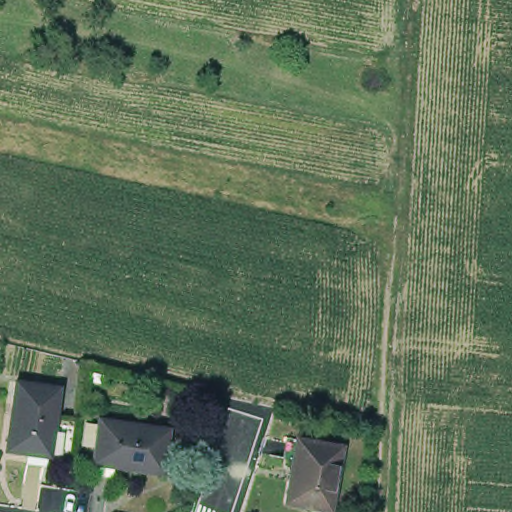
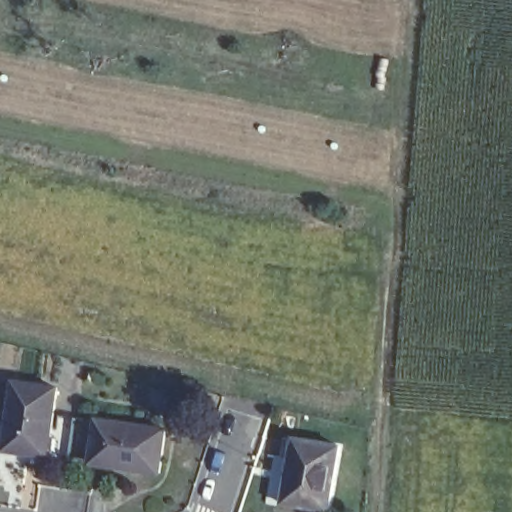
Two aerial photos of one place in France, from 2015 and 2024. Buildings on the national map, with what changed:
unchanged [(0,451),(11,382),(55,387),(45,457),(0,451)]
unchanged [(88,465),(94,421),(163,430),(156,474),(88,465)]
unchanged [(279,502),(291,439),(335,448),(324,510),(279,502)]

